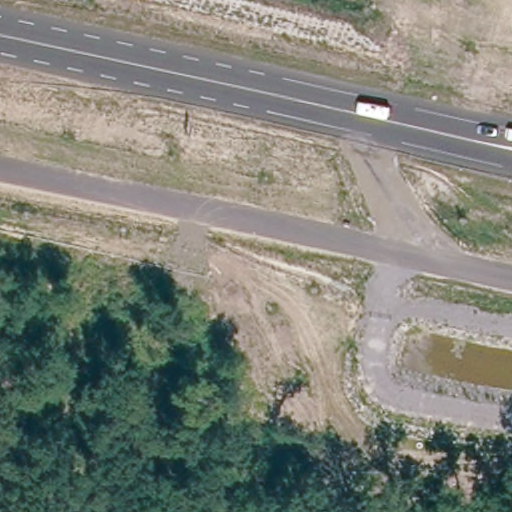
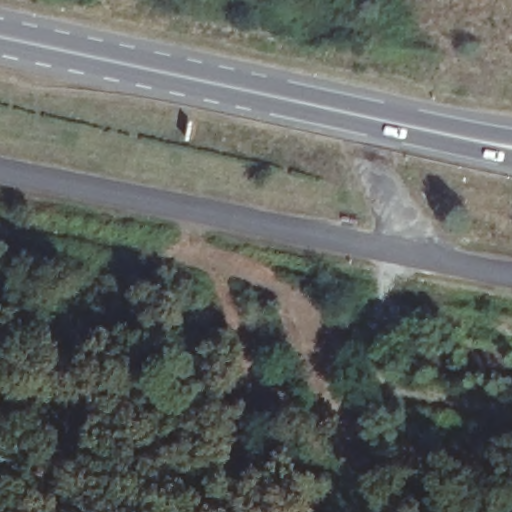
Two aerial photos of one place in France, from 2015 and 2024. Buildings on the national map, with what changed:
[]

